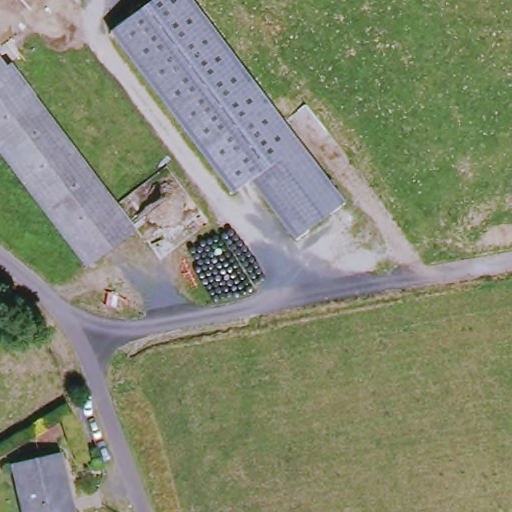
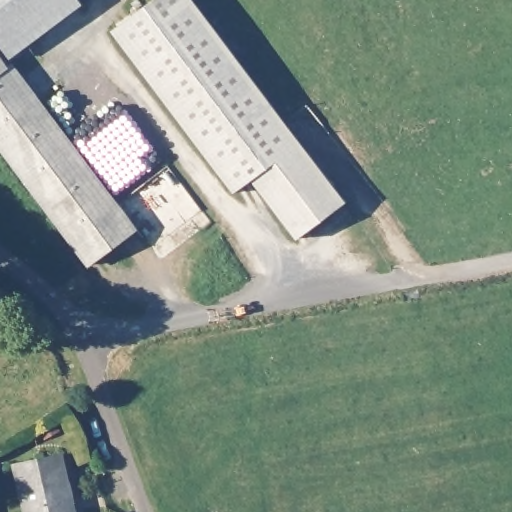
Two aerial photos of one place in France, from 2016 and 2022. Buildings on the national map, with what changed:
new [(10,60),(0,46),(0,0),(78,0),(82,5),(10,60)]
unchanged [(193,0),(346,204),(299,240),(255,182),(235,195),(112,32),(158,0),(193,0)]
unchanged [(4,69),(10,65),(134,226),(84,265),(0,153),(0,64),(4,69)]
unchanged [(54,454),(67,512),(21,512),(10,465),(54,454)]

